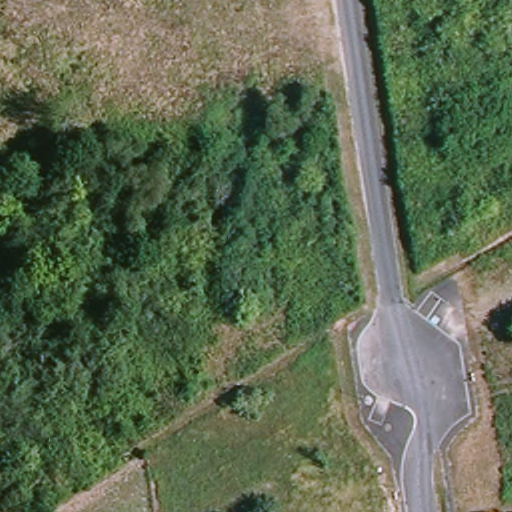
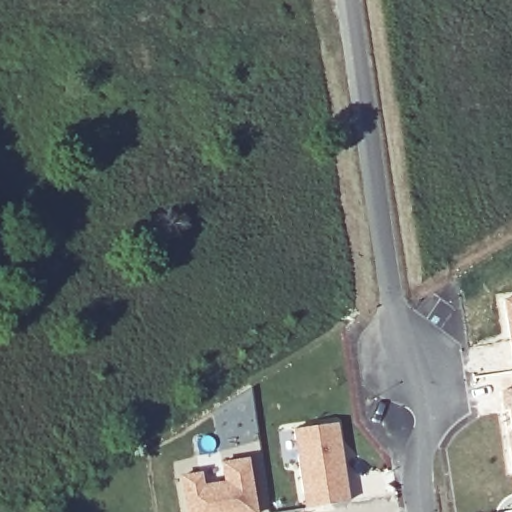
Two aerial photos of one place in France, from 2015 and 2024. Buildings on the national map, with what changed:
new [(512,360),(502,298),(512,297),(512,360)]
new [(502,407),(499,390),(512,389),(512,468),(508,446),(506,431),(511,430),(507,406),(502,407)]
new [(347,502),(304,508),(293,430),(335,424),(347,502)]
new [(221,465),(247,462),(254,512),(186,512),(181,478),(222,471),(221,465)]

